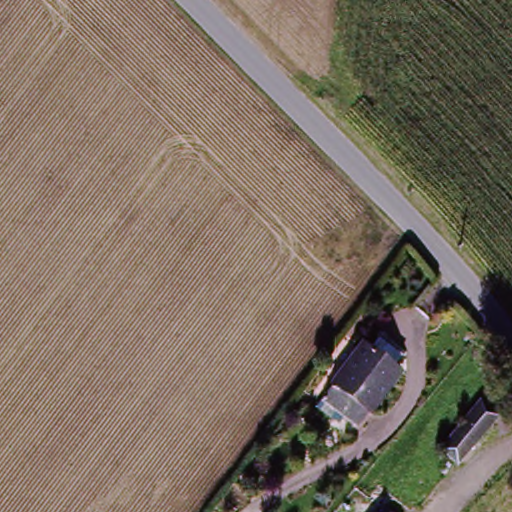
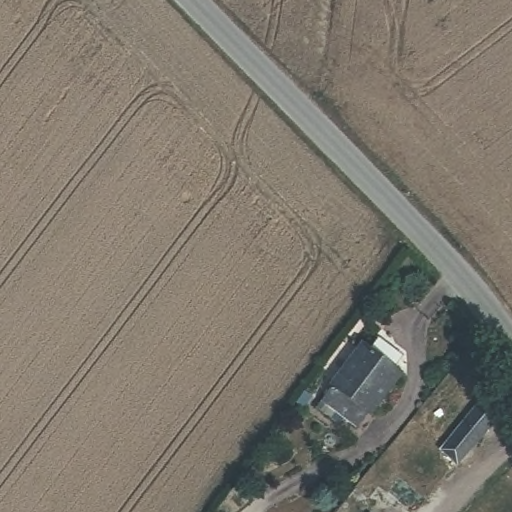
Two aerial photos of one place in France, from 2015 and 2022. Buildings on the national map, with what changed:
unchanged [(322,409),(332,396),(372,346),(383,355),(391,345),(403,353),(396,364),(405,372),(365,422),(355,435),(322,409)]
unchanged [(480,403),(497,417),(460,462),(444,448),(480,403)]

